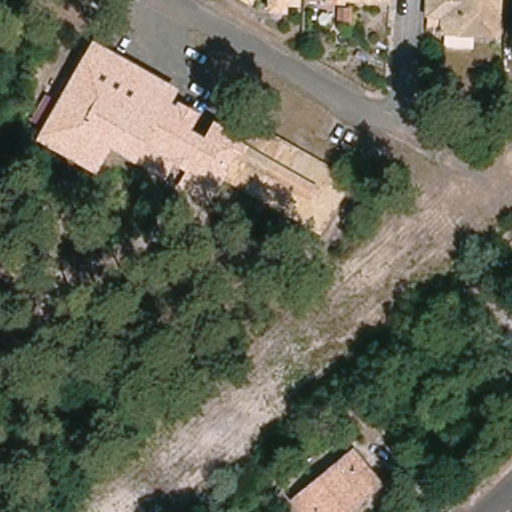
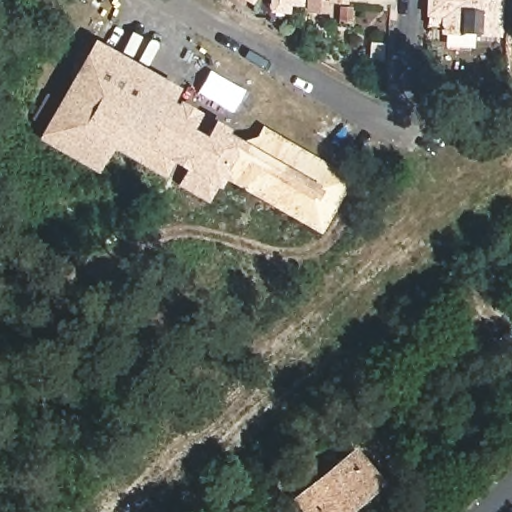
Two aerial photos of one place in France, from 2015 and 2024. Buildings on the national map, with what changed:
unchanged [(252,0),(247,8),(235,0),(253,0),(252,0)]
unchanged [(268,6),(276,6),(276,3),(272,0),(298,0),(297,9),(285,8),(285,17),(268,16),(268,6)]
unchanged [(306,0),(391,0),(391,8),(388,8),(306,4),(306,0)]
unchanged [(446,32),(446,17),(430,16),(431,4),(431,0),(503,0),(501,35),(446,32)]
unchanged [(101,61),(142,85),(152,90),(173,102),(168,111),(85,64),(90,55),(101,61)]
unchanged [(310,231),(220,179),(206,202),(180,186),(187,173),(171,164),(164,177),(112,148),(97,171),(42,139),(85,64),(168,111),(188,123),(180,136),(201,148),(209,135),(212,130),(226,137),(223,143),(235,149),(255,144),(260,135),(338,180),(348,186),(343,194),(325,227),(319,236),(310,231)]
unchanged [(338,435),(326,445),(315,432),(327,421),(338,435)]
unchanged [(300,493),(351,451),(377,482),(359,497),(341,512),(303,512),(292,499),(300,493)]

